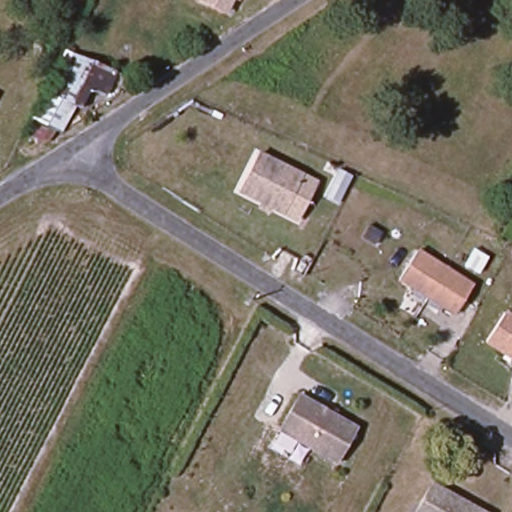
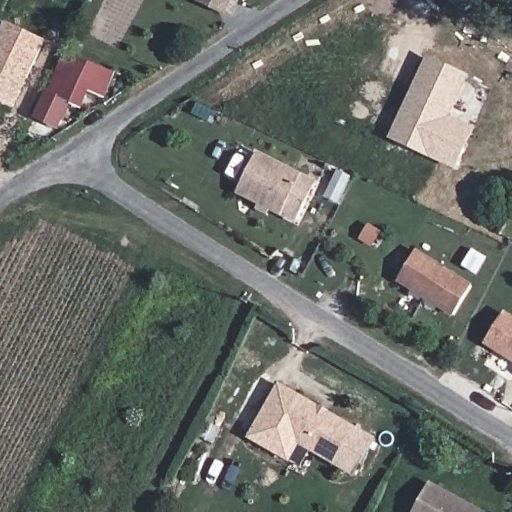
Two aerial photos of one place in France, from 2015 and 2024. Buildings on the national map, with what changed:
unchanged [(218,16),(187,0),(226,0),(218,16)]
unchanged [(227,0),(235,0),(234,3),(227,0)]
new [(15,110),(0,102),(0,33),(6,21),(47,40),(15,110)]
unchanged [(107,103),(88,97),(79,116),(70,113),(57,141),(51,139),(41,150),(20,142),(44,97),(60,55),(116,78),(107,103)]
new [(428,56),(470,75),(451,116),(476,128),(457,170),(390,139),(428,56)]
unchanged [(317,184),(299,220),(240,190),(258,155),(317,184)]
unchanged [(399,285),(417,256),(475,291),(457,321),(399,285)]
unchanged [(462,271),(471,256),(482,262),(474,279),(462,271)]
unchanged [(487,343),(505,315),(512,320),(512,358),(487,343)]
unchanged [(338,462),(320,452),(281,431),(301,396),(338,416),(358,427),(338,462)]
unchanged [(437,491),(474,512),(419,512),(433,489),(437,491)]

